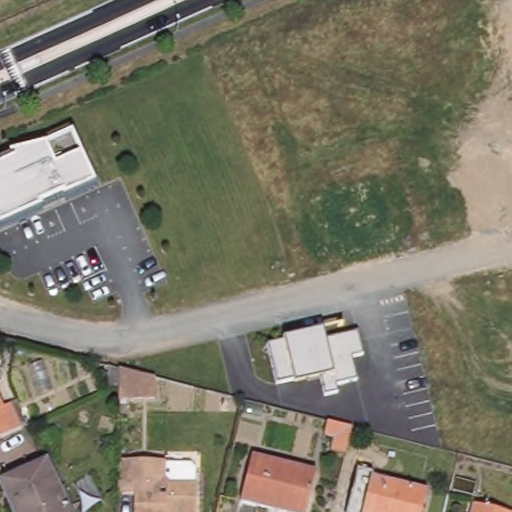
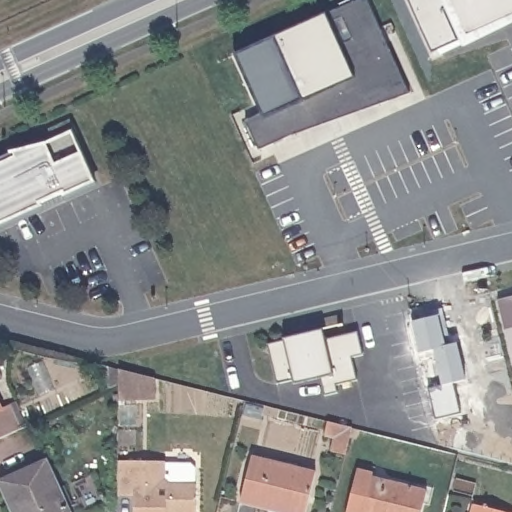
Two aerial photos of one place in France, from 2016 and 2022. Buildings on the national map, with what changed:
new [(371,8),(387,42),(410,94),(292,136),(259,151),(245,120),(262,113),(235,55),(356,0),(368,0),(371,8)]
new [(432,53),(408,0),(512,0),(512,17),(432,53)]
unchanged [(0,231),(0,160),(8,157),(6,153),(44,145),(71,130),(98,185),(0,231)]
new [(505,330),(498,300),(512,296),(512,359),(505,330)]
unchanged [(324,342),(357,335),(362,358),(350,360),(354,383),(334,386),(336,396),(324,399),(319,377),(278,386),(268,344),(320,332),(324,342)]
unchanged [(121,402),(122,389),(123,389),(124,388),(124,387),(124,385),(123,385),(122,384),(122,387),(107,393),(113,370),(122,372),(122,375),(124,375),(124,374),(124,373),(142,377),(148,379),(157,381),(159,403),(121,402)]
unchanged [(0,441),(0,400),(8,397),(23,431),(0,441)]
unchanged [(347,455),(347,456),(333,453),(338,434),(328,431),(330,423),(353,429),(347,455)]
unchanged [(277,512),(240,503),(253,457),(315,473),(305,512),(277,512)]
unchanged [(13,512),(0,484),(48,461),(72,512),(13,512)]
unchanged [(168,466),(194,466),(199,472),(199,488),(199,512),(137,512),(137,497),(119,496),(120,462),(168,463),(168,466)]
unchanged [(361,512),(371,476),(426,491),(420,512),(361,512)]
unchanged [(508,512),(475,512),(477,504),(508,512)]

